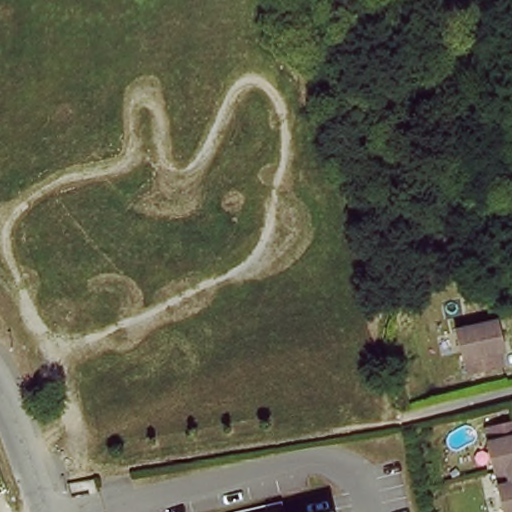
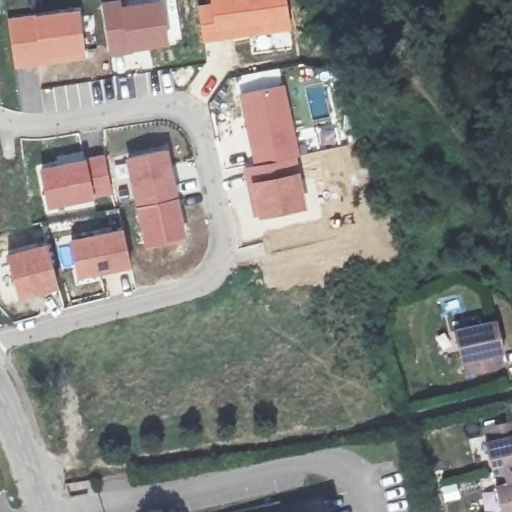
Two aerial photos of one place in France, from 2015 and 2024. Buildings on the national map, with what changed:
new [(126,0),(126,4),(152,0),(162,0),(170,44),(126,51),(110,56),(102,1),(111,0),(126,0)]
new [(252,34),(206,41),(201,7),(216,5),(215,0),(287,0),(291,24),(252,31),(252,34)]
new [(35,15),(80,7),(86,53),(45,60),(17,69),(10,18),(35,15)]
new [(244,95),(285,86),(300,156),(259,165),(244,95)]
new [(170,147),(180,196),(137,207),(127,158),(170,147)]
new [(106,153),(114,194),(47,209),(40,166),(106,153)]
new [(123,227),(134,266),(79,280),(70,239),(123,227)]
new [(50,246),(60,285),(20,296),(10,258),(50,246)]
unchanged [(501,367),(469,375),(466,361),(462,364),(454,333),(498,322),(505,353),(499,355),(501,367)]
unchanged [(484,444),(490,443),(486,429),(512,423),(512,470),(496,474),(490,474),(484,444)]
unchanged [(495,488),(500,487),(496,474),(512,470),(512,512),(504,512),(495,488)]

